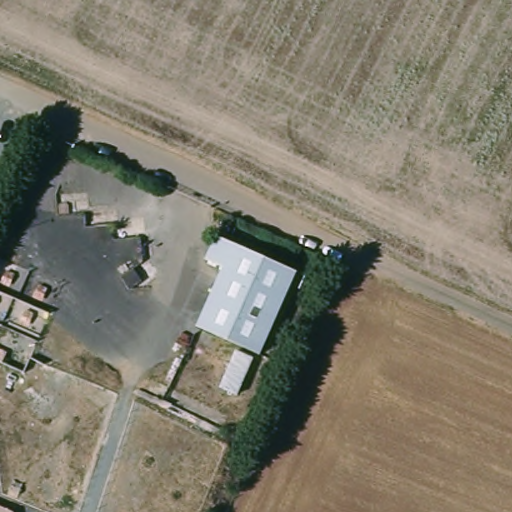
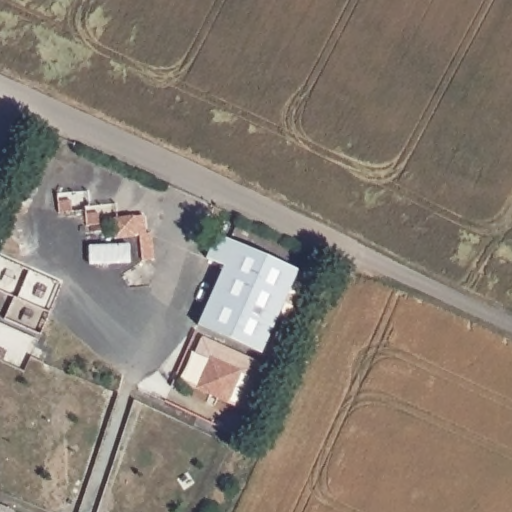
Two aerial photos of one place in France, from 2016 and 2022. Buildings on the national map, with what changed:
unchanged [(259,360),(200,331),(225,270),(206,262),(218,234),(300,274),(259,360)]
new [(201,337),(259,363),(241,408),(227,403),(195,388),(181,383),(201,337)]
new [(0,506),(13,512),(0,512),(0,506)]

